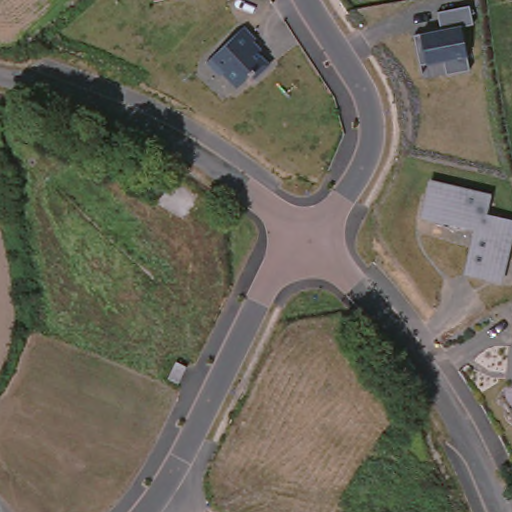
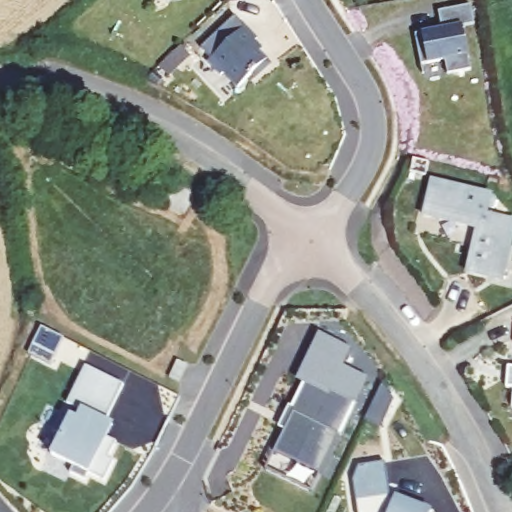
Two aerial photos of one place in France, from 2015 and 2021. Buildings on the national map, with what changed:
unchanged [(456,25),(465,72),(426,83),(411,13),(470,3),(474,20),(456,25)]
unchanged [(244,90),(212,59),(242,32),(272,65),(244,90)]
unchanged [(500,279),(462,268),(471,229),(426,215),(433,179),(488,195),(485,209),(512,216),(512,238),(500,279)]
new [(352,347),(343,366),(366,378),(312,490),(266,466),(305,384),(296,380),(317,335),(352,347)]
new [(106,443),(116,448),(108,464),(114,467),(104,487),(88,479),(85,486),(70,479),(73,472),(51,461),(60,441),(53,438),(62,419),(76,426),(81,417),(67,410),(85,373),(123,391),(105,428),(112,432),(106,443)]
unchanged [(175,397),(165,392),(174,375),(183,380),(175,397)]
new [(388,495),(395,497),(431,509),(431,512),(357,512),(352,481),(359,464),(384,462),(388,495)]

